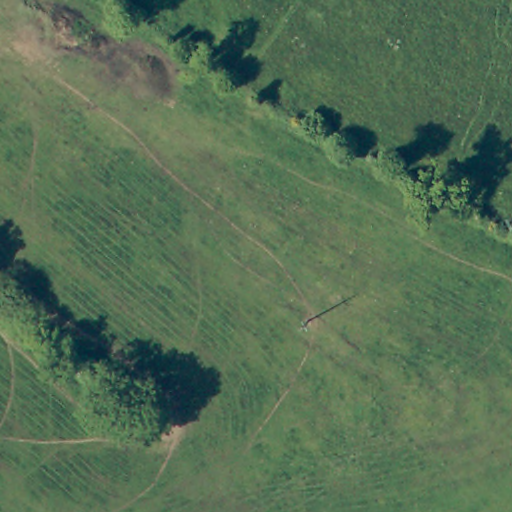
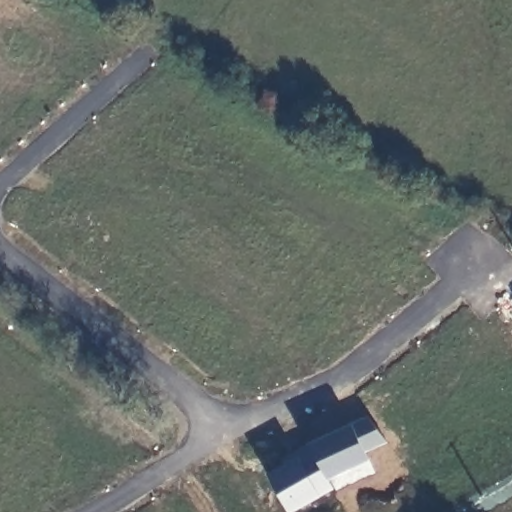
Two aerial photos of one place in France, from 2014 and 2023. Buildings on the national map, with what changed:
new [(367,414),(386,437),(364,448),(368,456),(327,475),(308,441),(367,414)]
new [(283,461),(280,456),(307,440),(308,441),(327,475),(333,485),(290,510),(267,470),(283,461)]

